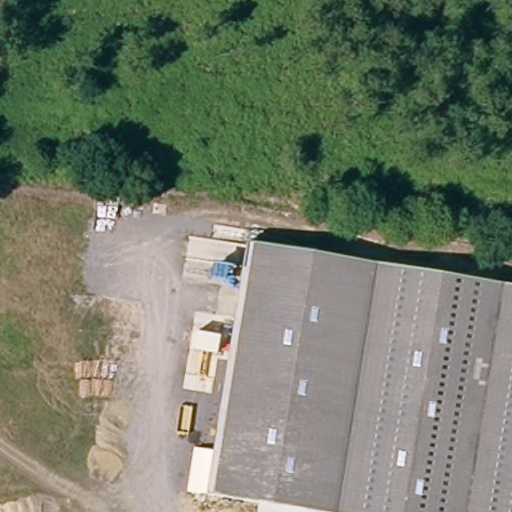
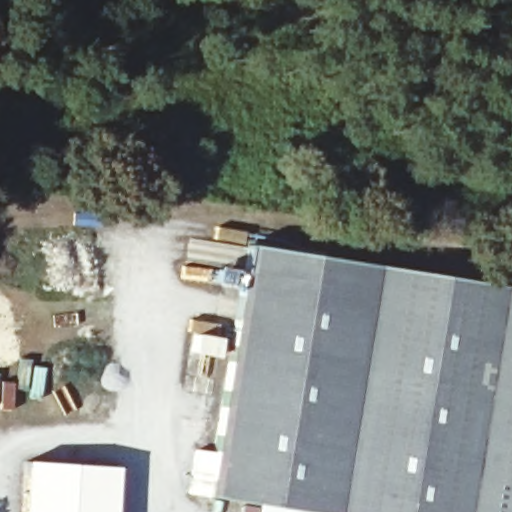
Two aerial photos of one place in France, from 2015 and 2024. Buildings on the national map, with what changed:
unchanged [(205,491),(245,239),(512,282),(512,512),(257,512),(259,500),(205,491)]
new [(113,512),(20,512),(24,460),(116,466),(113,512)]

